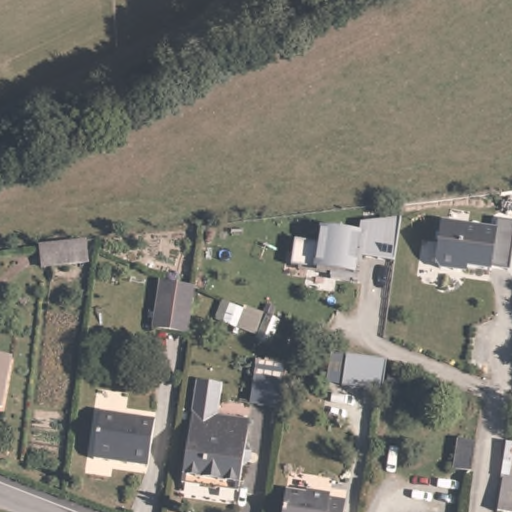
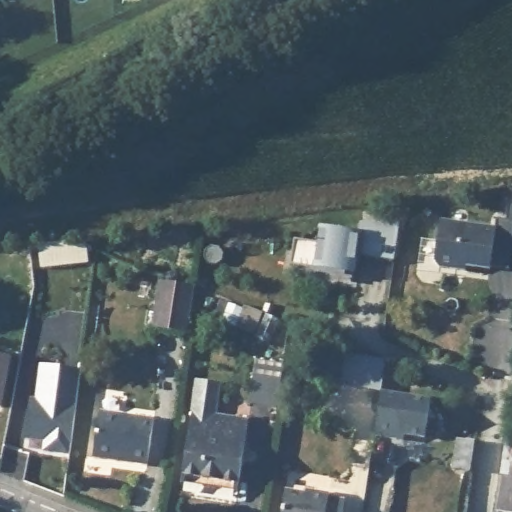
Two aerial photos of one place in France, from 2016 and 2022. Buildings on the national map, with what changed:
unchanged [(319,243),(323,228),(360,233),(361,223),(401,218),(395,262),(359,258),(356,276),(291,269),(295,241),(319,243)]
unchanged [(496,219),(512,222),(512,255),(510,271),(467,267),(466,274),(436,270),(442,221),(495,228),(496,219)]
unchanged [(80,244),(82,268),(43,271),(40,247),(80,244)]
unchanged [(186,333),(152,327),(156,281),(180,282),(193,287),(186,333)]
new [(222,302),(243,309),(244,306),(264,313),(255,335),(216,320),(222,302)]
unchanged [(376,388),(336,382),(340,351),(380,356),(376,388)]
unchanged [(8,355),(0,402),(0,353),(8,355)]
unchanged [(255,362),(284,365),(278,410),(249,404),(255,362)]
new [(82,369),(72,456),(42,451),(43,443),(23,440),(29,398),(36,399),(39,365),(82,369)]
new [(379,392),(432,398),(427,438),(403,435),(403,440),(373,435),(379,392)]
unchanged [(250,423),(242,490),(184,480),(194,413),(250,423)]
unchanged [(158,425),(154,468),(100,462),(104,419),(158,425)]
unchanged [(512,442),(512,512),(499,512),(507,442),(512,442)]
unchanged [(471,481),(457,478),(462,446),(476,448),(471,481)]
unchanged [(306,495),(305,492),(343,502),(342,512),(283,512),(286,494),(306,495)]

